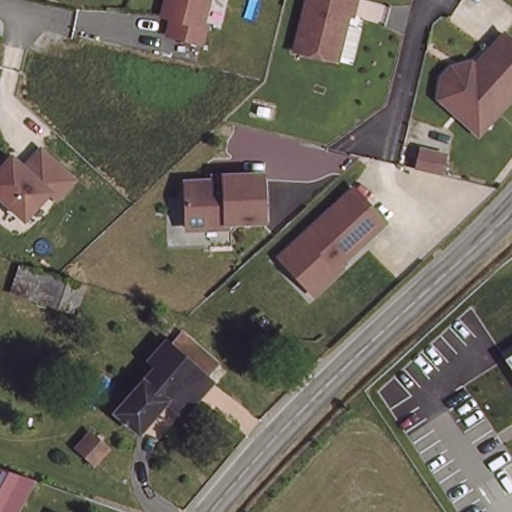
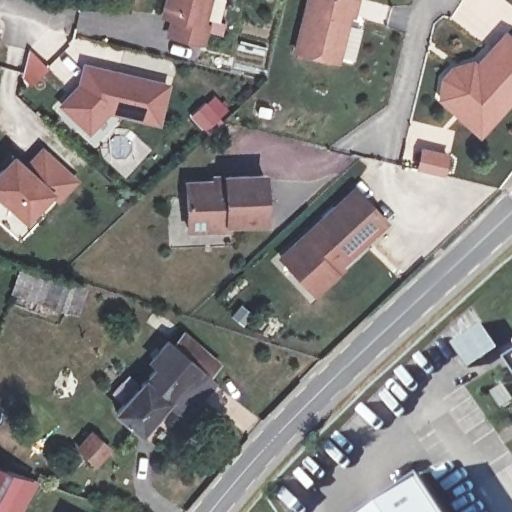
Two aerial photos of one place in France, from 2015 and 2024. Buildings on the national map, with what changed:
unchanged [(168,0),(210,0),(204,22),(208,23),(203,40),(170,32),(174,15),(165,13),(168,0)]
unchanged [(356,2),(352,18),(347,17),(345,28),(359,32),(351,63),(337,60),(335,64),(293,54),(307,0),(350,0),(356,2)]
unchanged [(475,133),(446,108),(442,104),(445,85),(454,74),(473,68),(477,72),(506,38),(512,43),(512,105),(497,122),(483,139),(475,133)]
new [(108,114),(87,136),(55,106),(75,85),(80,63),(170,84),(157,127),(108,114)]
unchanged [(41,147),(77,181),(58,200),(52,194),(25,220),(0,197),(0,168),(13,155),(24,166),(41,147)]
unchanged [(420,152),(445,158),(441,178),(430,175),(416,172),(420,152)]
unchanged [(228,179),(228,174),(266,173),(268,218),(231,219),(231,224),(191,226),(189,181),(228,179)]
unchanged [(355,190),(386,223),(333,272),(337,275),(315,296),(289,268),(280,259),(290,250),(355,190)]
unchanged [(90,283),(81,309),(17,288),(25,263),(90,283)]
unchanged [(169,398),(140,433),(116,413),(157,364),(150,358),(153,355),(150,352),(154,346),(158,349),(162,343),(166,339),(173,345),(182,333),(214,360),(205,372),(213,379),(185,412),(169,398)]
unchanged [(506,360),(512,356),(512,369),(506,360)]
unchanged [(80,449),(94,434),(96,436),(107,447),(93,462),(83,452),(80,449)]
unchanged [(18,512),(10,512),(0,506),(0,463),(36,477),(18,512)]
new [(445,512),(364,512),(420,475),(445,512)]
unchanged [(0,512),(0,506),(10,512),(0,512)]

